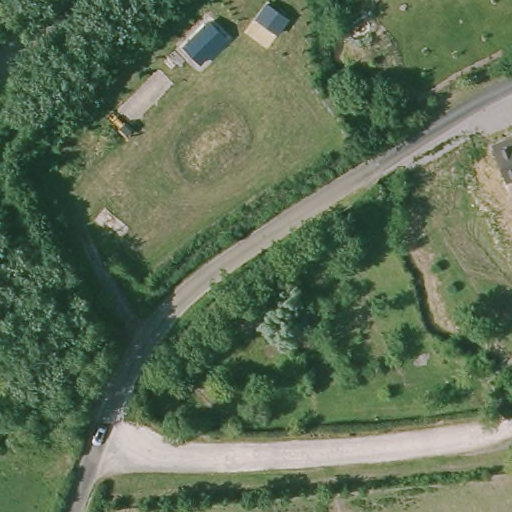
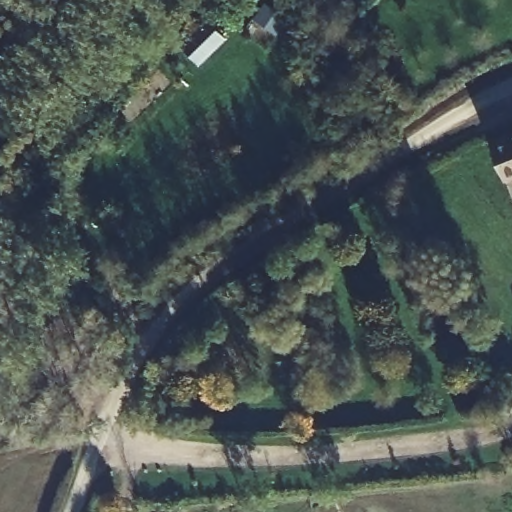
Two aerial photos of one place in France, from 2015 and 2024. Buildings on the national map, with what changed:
unchanged [(512,176),(505,178),(492,139),(512,132),(512,176)]
unchanged [(118,259),(98,243),(114,224),(134,239),(118,259)]

